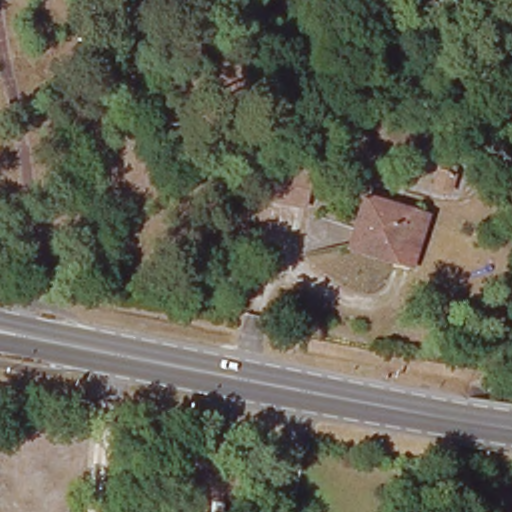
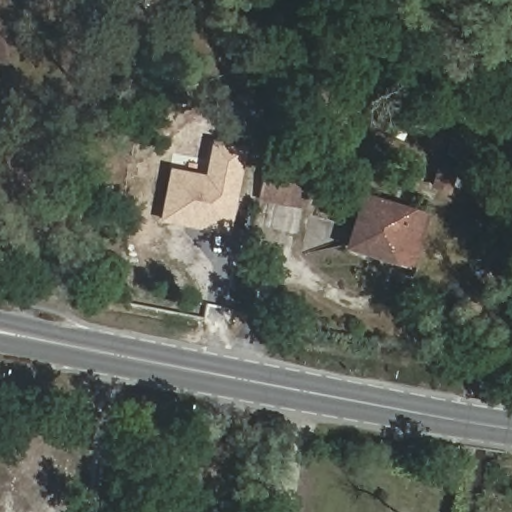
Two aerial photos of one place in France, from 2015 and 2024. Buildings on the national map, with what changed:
unchanged [(453,135),(448,150),(428,144),(432,128),(453,135)]
new [(212,140),(247,146),(230,235),(159,222),(170,168),(205,175),(212,140)]
unchanged [(313,176),(306,208),(261,199),(267,167),(313,176)]
unchanged [(394,263),(349,249),(363,197),(428,216),(421,240),(412,269),(394,263)]

